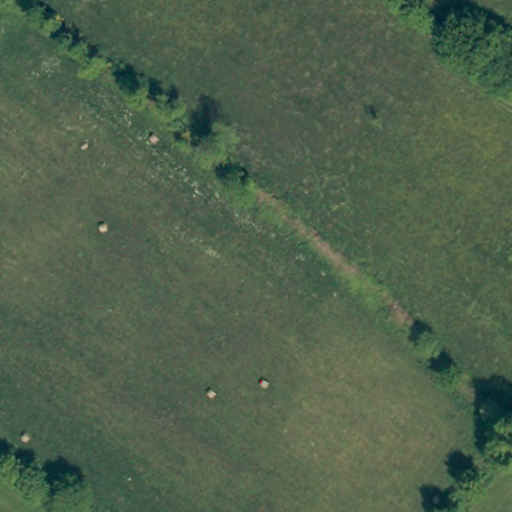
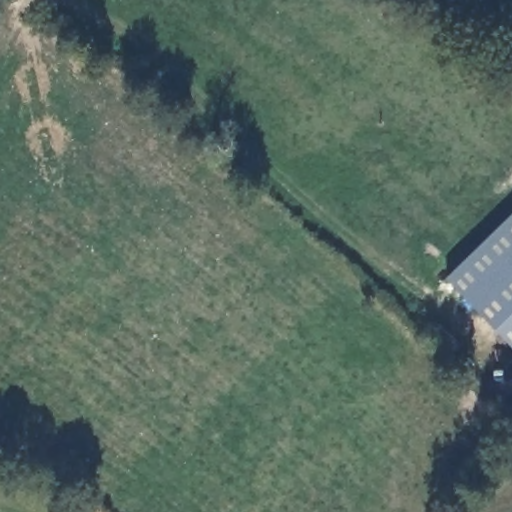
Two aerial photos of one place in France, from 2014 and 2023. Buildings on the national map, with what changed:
new [(512,213),(512,344),(447,277),(512,213)]

